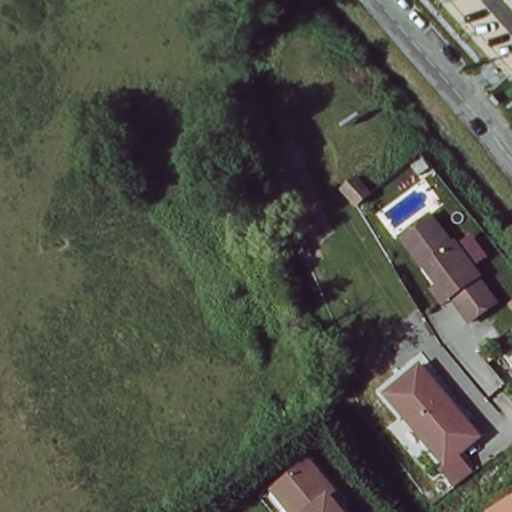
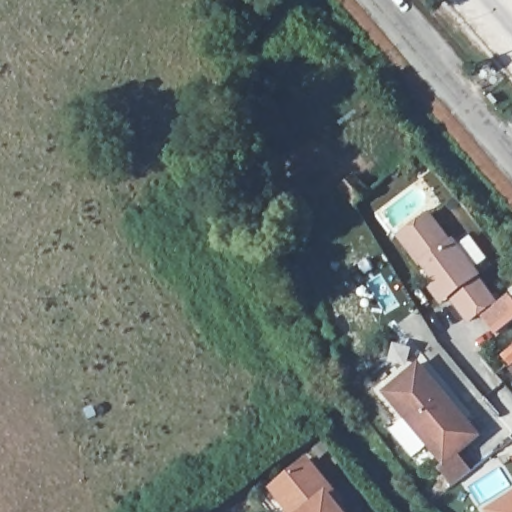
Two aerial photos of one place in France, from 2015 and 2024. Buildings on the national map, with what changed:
unchanged [(353,187),(367,175),(380,192),(367,203),(353,187)]
unchanged [(429,287),(436,283),(427,268),(431,265),(427,260),(420,264),(400,234),(431,214),(450,243),(454,241),(477,277),(475,278),(492,304),(465,322),(448,296),(446,298),(439,302),(429,287)]
unchanged [(442,465),(379,391),(417,360),(481,433),(442,465)]
unchanged [(272,489),(281,481),(307,460),(333,492),(341,502),(337,506),(342,512),(290,512),(272,489)]
unchanged [(512,512),(488,512),(487,511),(512,495),(512,512)]

